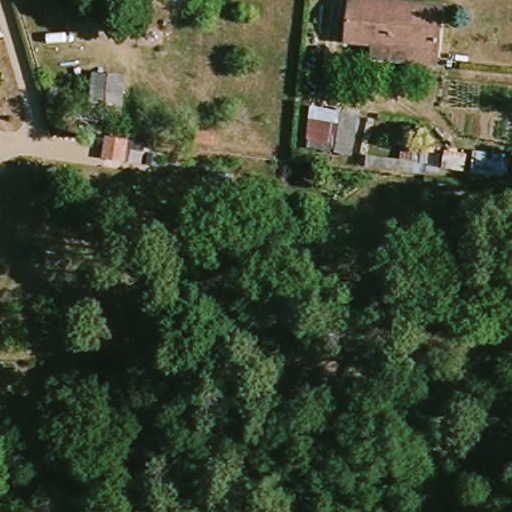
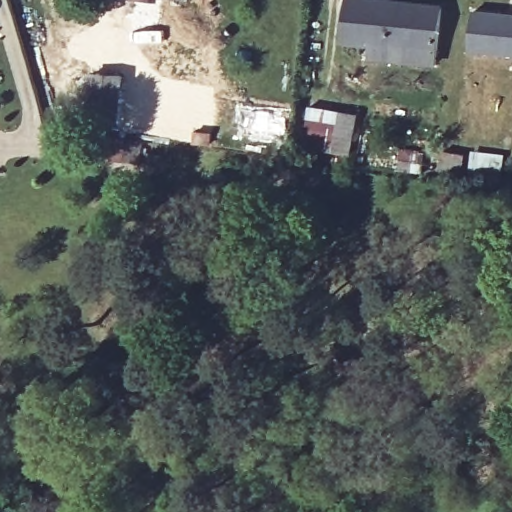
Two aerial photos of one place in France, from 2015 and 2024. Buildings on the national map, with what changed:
unchanged [(360,0),(381,0),(396,1),(423,4),(436,4),(455,6),(450,51),(428,49),(355,43),(360,0)]
new [(512,13),(512,57),(469,53),(473,10),(512,13)]
unchanged [(106,74),(139,76),(135,112),(102,111),(106,74)]
unchanged [(325,153),(326,144),(328,108),(360,111),(357,145),(356,155),(325,153)]
unchanged [(192,129),(212,132),(211,146),(190,144),(192,129)]
unchanged [(125,138),(117,155),(97,151),(99,135),(125,138)]
new [(471,150),(506,154),(503,173),(469,169),(471,150)]

